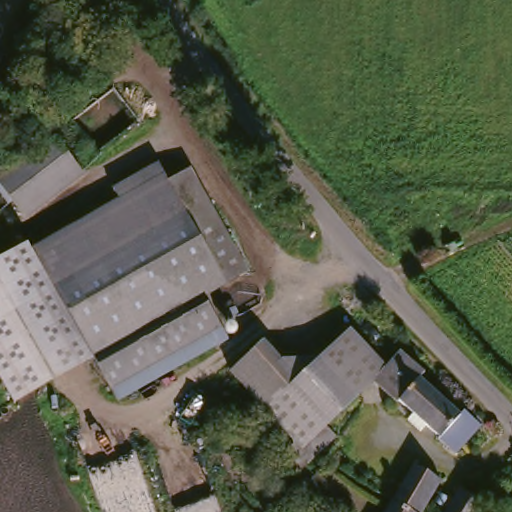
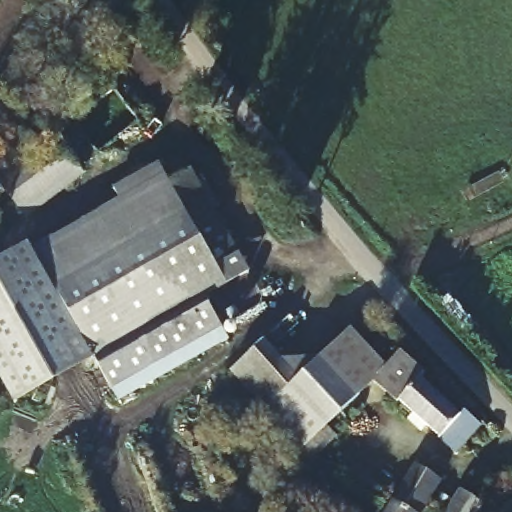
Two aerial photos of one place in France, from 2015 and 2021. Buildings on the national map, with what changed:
unchanged [(48,145),(74,177),(18,224),(0,202),(0,187),(48,145)]
unchanged [(166,191),(163,194),(129,214),(119,220),(36,270),(89,359),(16,402),(0,375),(0,258),(28,242),(31,250),(119,201),(111,189),(158,163),(172,188),(166,191)]
unchanged [(187,179),(248,281),(224,296),(163,194),(187,179)]
unchanged [(224,296),(243,327),(115,404),(36,270),(119,220),(163,194),(224,296)]
unchanged [(316,454),(305,444),(296,452),(257,412),(259,411),(274,396),(284,387),(342,332),(380,370),(367,383),(369,385),(365,389),(322,428),(332,438),(316,454)]
unchanged [(223,372),(248,350),(284,387),(274,396),(259,411),(223,372)]
unchanged [(380,370),(396,355),(418,374),(414,380),(454,415),(458,410),(476,426),(450,456),(369,385),(367,383),(380,370)]
unchanged [(408,470),(436,486),(421,512),(384,512),(386,510),(408,470)]
unchanged [(379,478),(391,485),(377,510),(366,503),(379,478)]
unchanged [(481,501),(475,512),(443,512),(459,485),(481,501)]

